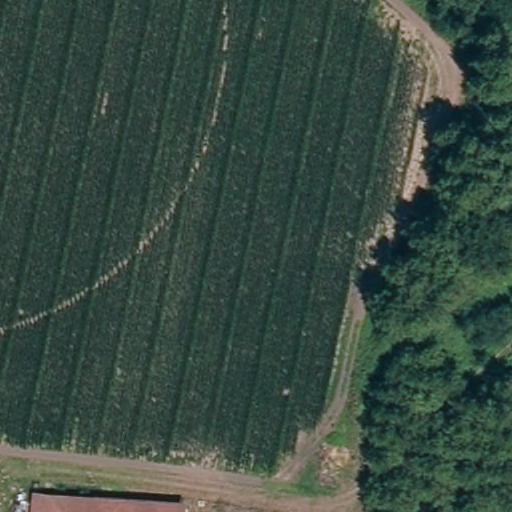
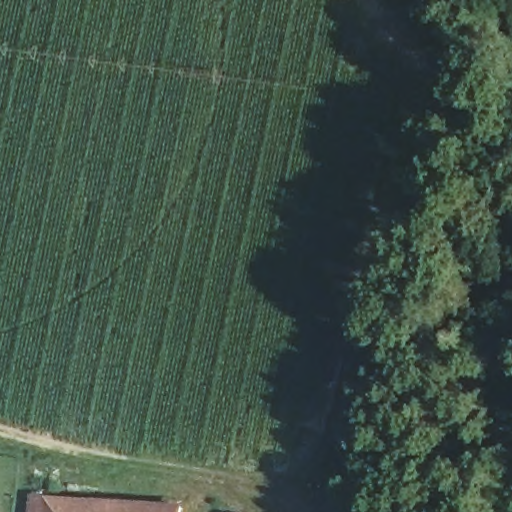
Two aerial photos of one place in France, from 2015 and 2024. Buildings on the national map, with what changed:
unchanged [(31,493),(49,496),(47,512),(29,512),(31,493)]
unchanged [(49,496),(172,512),(47,512),(49,496)]

